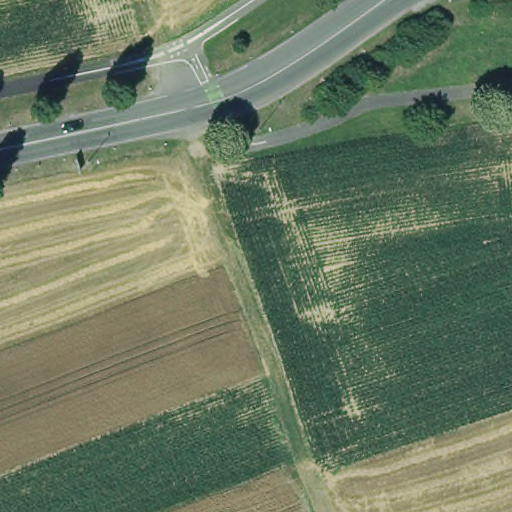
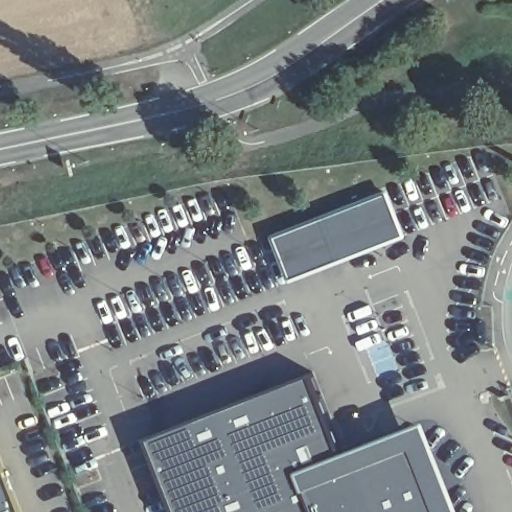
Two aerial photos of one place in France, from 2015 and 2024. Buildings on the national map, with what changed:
new [(395,192),(412,236),(295,282),(278,234),(395,192)]
new [(313,374),(345,454),(427,421),(462,512),(178,512),(148,438),(313,374)]
new [(28,512),(0,512),(0,443),(0,442),(28,512)]

